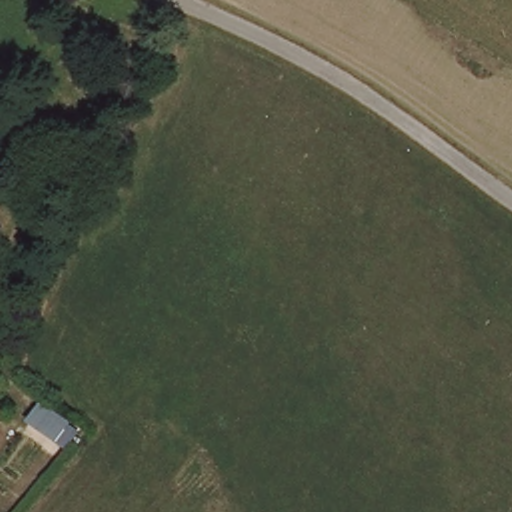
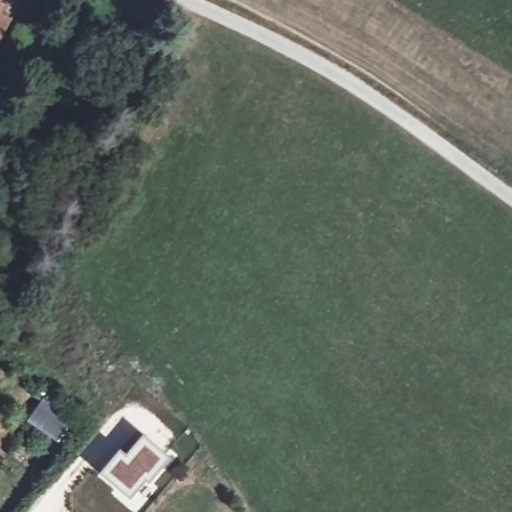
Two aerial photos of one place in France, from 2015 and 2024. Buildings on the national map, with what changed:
new [(120,447),(127,453),(144,433),(170,455),(149,481),(145,477),(131,494),(101,471),(120,447)]

